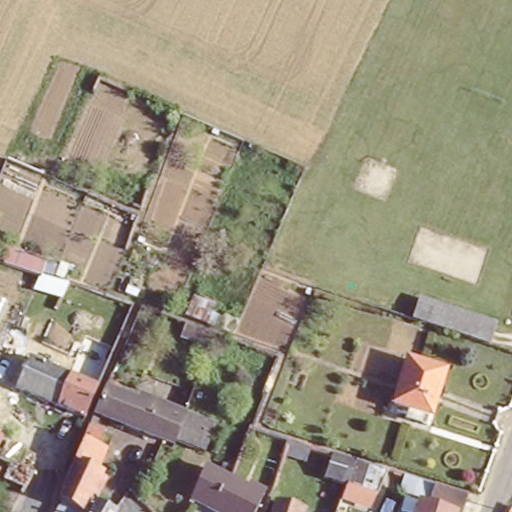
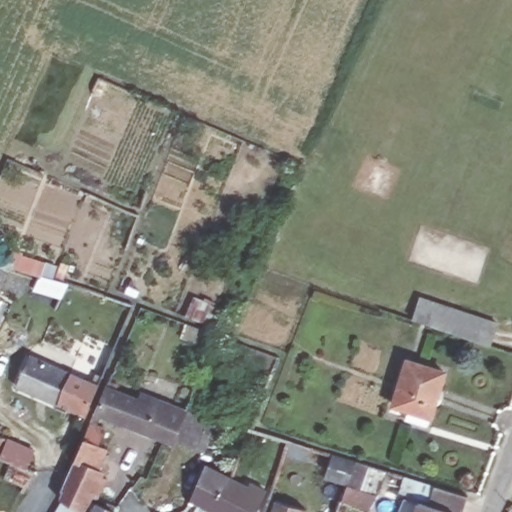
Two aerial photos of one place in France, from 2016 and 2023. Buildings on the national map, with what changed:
unchanged [(422,291),(500,317),(491,340),(415,313),(422,291)]
unchanged [(69,371),(57,402),(16,387),(29,356),(69,371)]
unchanged [(400,413),(405,401),(393,397),(408,357),(445,371),(431,411),(427,422),(400,413)]
unchanged [(69,371),(99,382),(87,413),(57,402),(69,371)]
unchanged [(95,409),(103,386),(158,406),(161,399),(187,410),(212,418),(201,448),(177,440),(175,445),(169,443),(171,437),(95,409)]
unchanged [(60,496),(90,422),(105,429),(100,443),(110,448),(103,464),(108,466),(105,475),(107,476),(99,496),(92,493),(87,507),(68,500),(60,496)]
unchanged [(286,439),(306,445),(305,460),(282,452),(286,439)]
unchanged [(330,477),(323,475),(330,452),(355,460),(338,506),(322,501),(330,477)]
unchanged [(11,460),(35,470),(27,483),(6,475),(11,460)]
unchanged [(265,511),(241,501),(237,512),(220,512),(193,499),(206,465),(233,476),(247,482),(271,492),(265,511)]
unchanged [(421,478),(454,489),(447,510),(415,500),(421,478)]
unchanged [(68,500),(87,507),(95,512),(61,512),(68,500)]
unchanged [(415,501),(451,512),(411,512),(415,501)]
unchanged [(105,504),(116,511),(116,512),(99,512),(105,504)]

